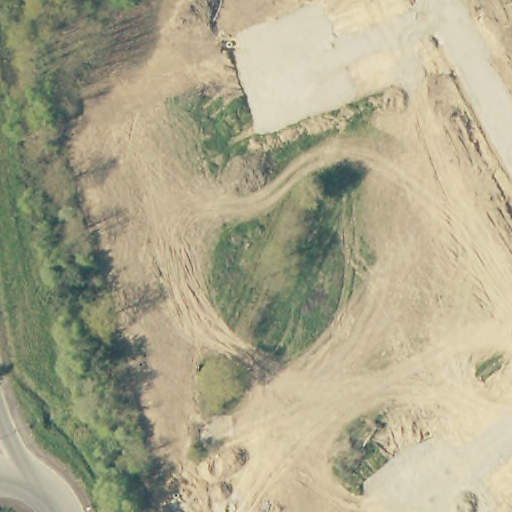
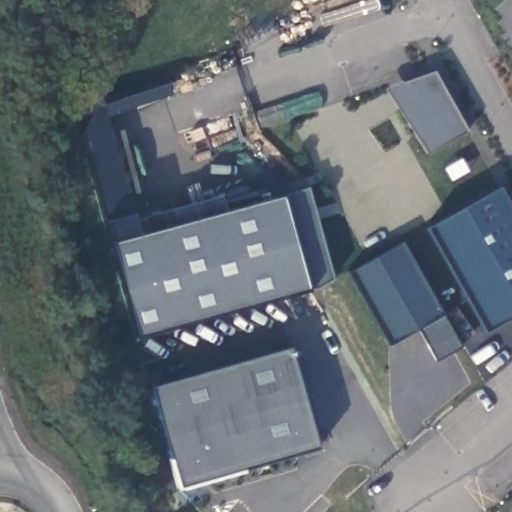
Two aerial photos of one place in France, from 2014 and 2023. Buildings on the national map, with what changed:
new [(426,152),(383,88),(433,70),(465,131),(426,152)]
new [(307,288),(134,335),(102,217),(79,133),(101,96),(130,210),(132,218),(219,194),(222,210),(280,194),(305,185),(330,278),(307,288)]
new [(500,185),(512,206),(512,315),(484,331),(426,227),(500,185)]
new [(317,447),(177,489),(149,385),(291,347),(317,447)]

